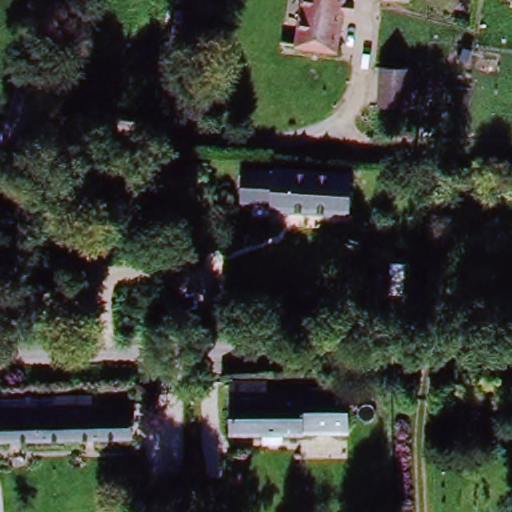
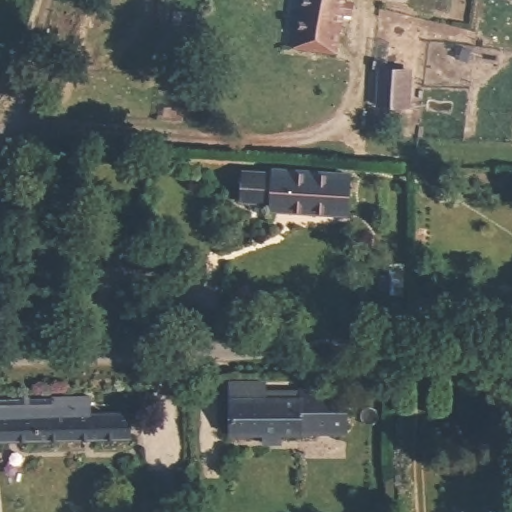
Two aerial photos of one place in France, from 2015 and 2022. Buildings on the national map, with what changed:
unchanged [(310,0),(347,0),(338,60),(303,54),(310,0)]
unchanged [(246,170),(355,177),(354,214),(274,209),(275,202),(243,200),(246,170)]
unchanged [(391,306),(370,306),(370,283),(392,283),(391,306)]
unchanged [(298,398),(299,386),(350,388),(348,439),(222,433),(225,395),(298,398)]
unchanged [(20,406),(56,408),(55,417),(119,421),(117,450),(0,442),(0,414),(20,416),(20,406)]

